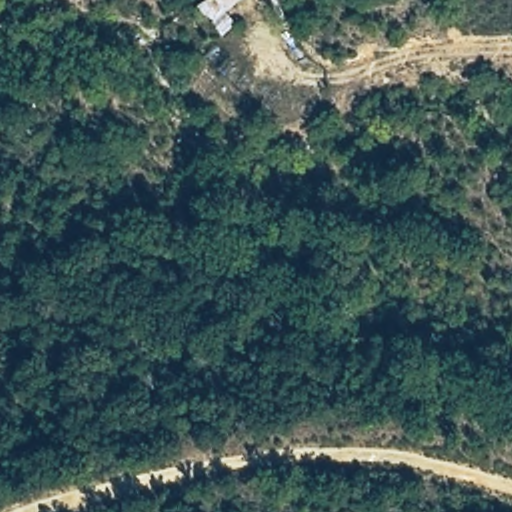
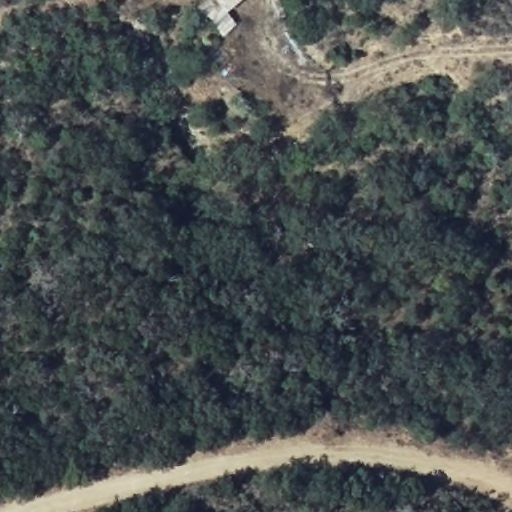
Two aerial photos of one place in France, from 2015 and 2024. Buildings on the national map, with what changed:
unchanged [(257,13),(244,13),(247,0),(260,0),(257,13)]

